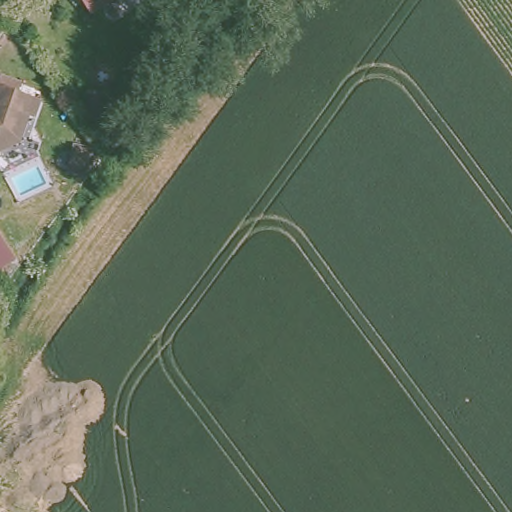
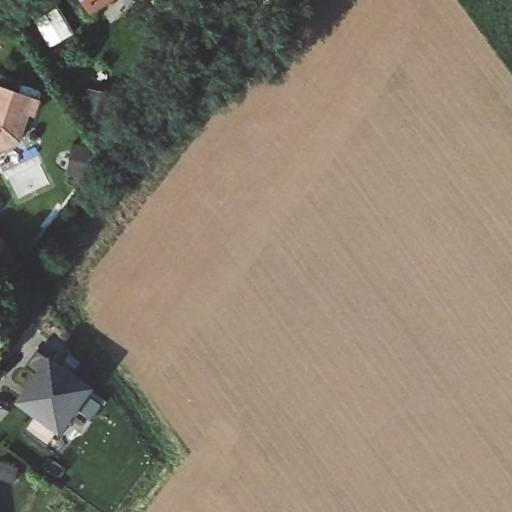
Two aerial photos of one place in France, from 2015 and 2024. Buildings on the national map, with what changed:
unchanged [(97,12),(89,0),(115,0),(97,12)]
unchanged [(36,123),(28,120),(20,147),(0,156),(0,94),(40,105),(36,123)]
unchanged [(0,273),(0,235),(16,264),(0,273)]
new [(22,432),(35,416),(17,403),(51,358),(95,390),(60,435),(57,433),(46,450),(22,432)]
new [(18,470),(13,484),(0,478),(0,464),(0,463),(18,470)]

